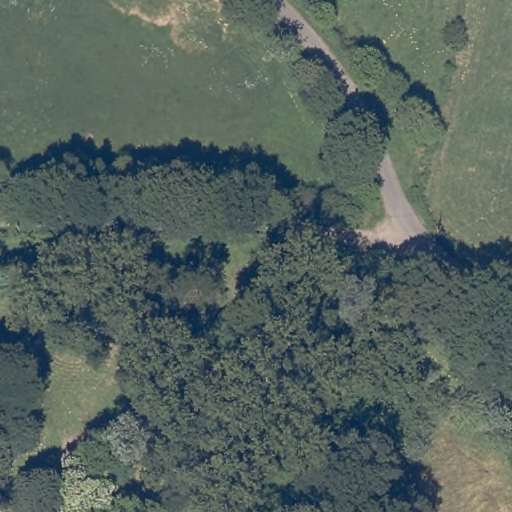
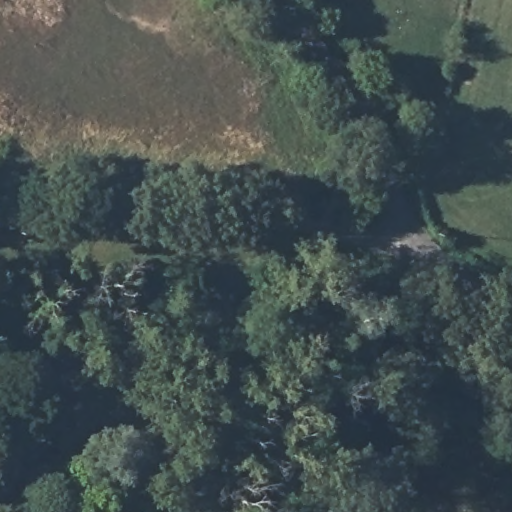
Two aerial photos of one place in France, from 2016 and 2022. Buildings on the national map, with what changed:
[]

